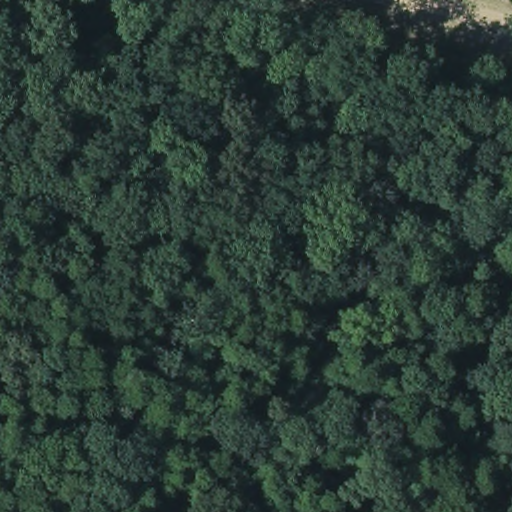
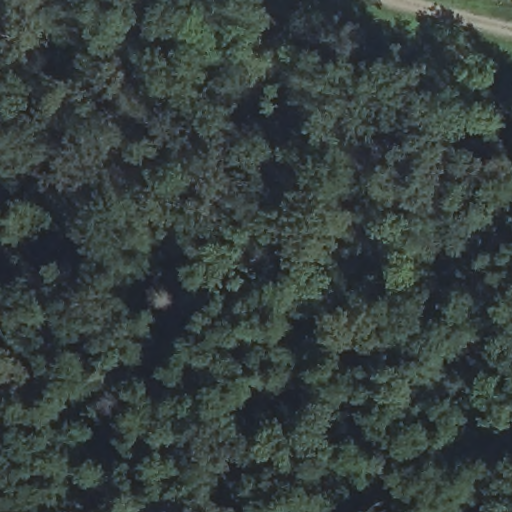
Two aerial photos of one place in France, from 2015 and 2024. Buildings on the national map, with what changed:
unchanged [(495,132),(512,137),(512,165),(488,156),(495,132)]

